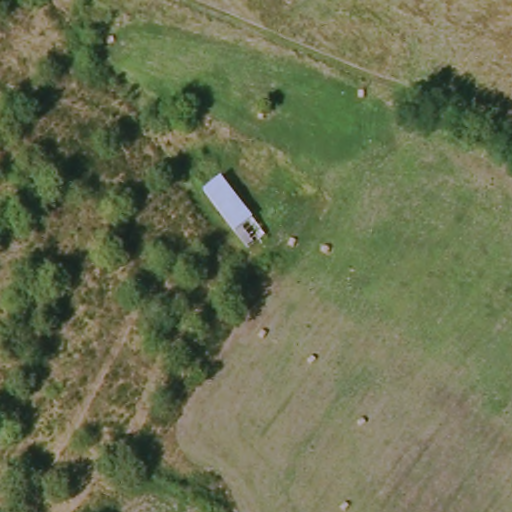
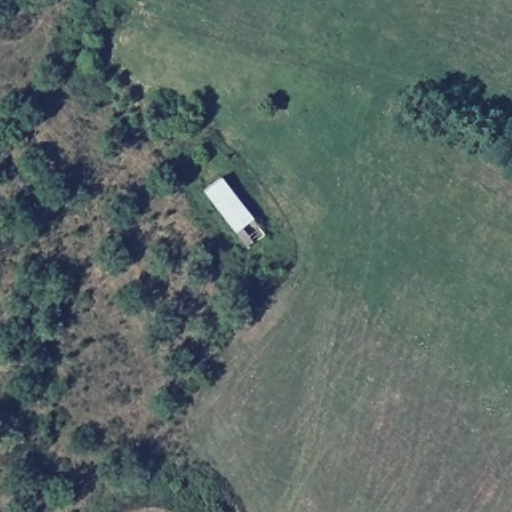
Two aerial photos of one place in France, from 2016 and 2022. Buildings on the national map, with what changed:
unchanged [(202,158),(215,175),(246,217),(261,237),(243,250),(230,230),(196,189),(187,172),(202,158)]

